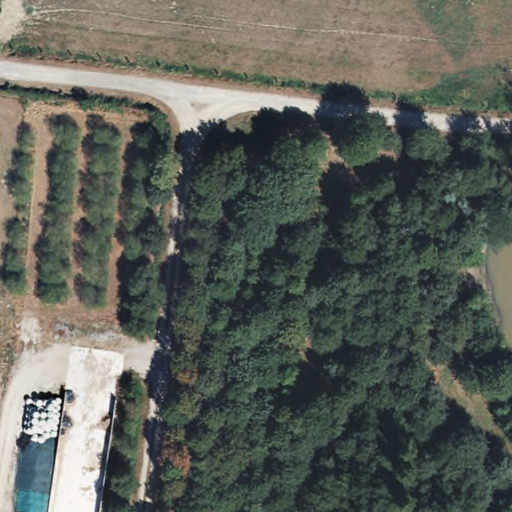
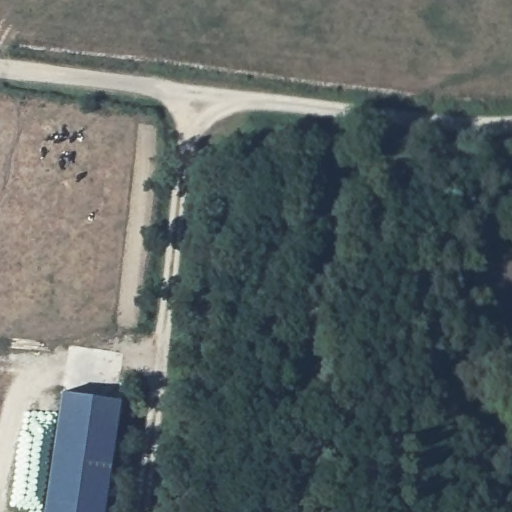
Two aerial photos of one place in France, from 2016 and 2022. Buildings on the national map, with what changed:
new [(67,393),(124,402),(107,512),(50,512),(67,393)]

